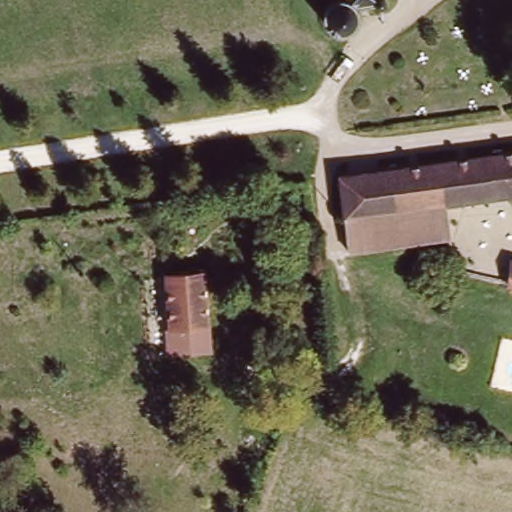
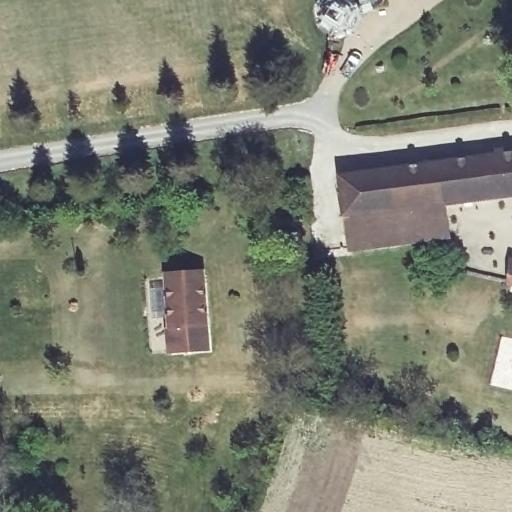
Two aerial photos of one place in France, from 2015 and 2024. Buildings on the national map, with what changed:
unchanged [(316,13),(319,4),(324,0),(379,0),(380,6),(383,11),(373,12),(371,20),(366,23),(363,14),(353,16),(347,29),(341,32),(327,32),(317,21),(316,13)]
unchanged [(453,242),(429,244),(357,253),(352,211),(348,177),(512,157),(512,197),(449,203),(453,242)]
unchanged [(279,185),(317,181),(318,213),(282,214),(279,185)]
unchanged [(496,260),(512,258),(512,279),(497,275),(496,260)]
unchanged [(176,327),(169,277),(206,272),(211,322),(215,348),(174,352),(172,327),(176,327)]

